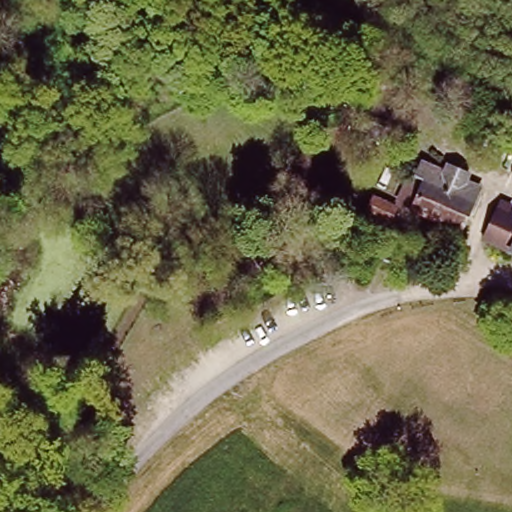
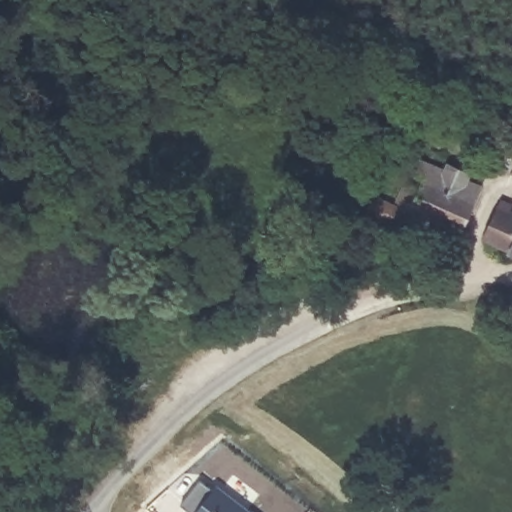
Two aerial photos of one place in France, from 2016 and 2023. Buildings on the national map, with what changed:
unchanged [(365,127),(366,115),(397,126),(394,136),(365,127)]
unchanged [(408,212),(410,209),(405,206),(410,196),(414,198),(427,169),(440,173),(443,165),(463,174),(460,182),(475,190),(460,231),(408,212)]
unchanged [(374,212),(380,197),(403,208),(397,223),(374,212)]
unchanged [(295,217),(296,203),(329,205),(328,217),(295,217)]
unchanged [(501,203),(512,207),(512,245),(489,235),(501,203)]
new [(203,480),(216,490),(219,486),(252,512),(193,512),(183,505),(203,480)]

